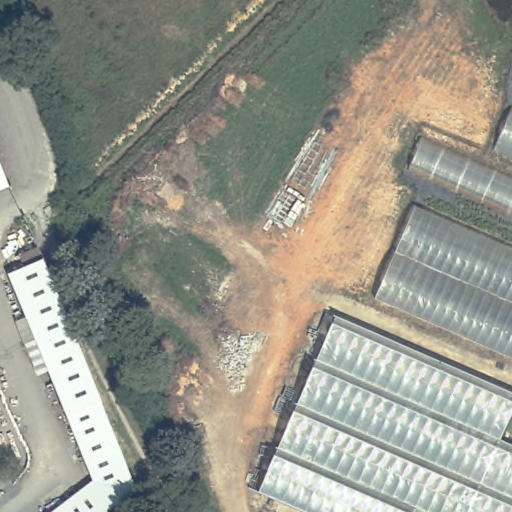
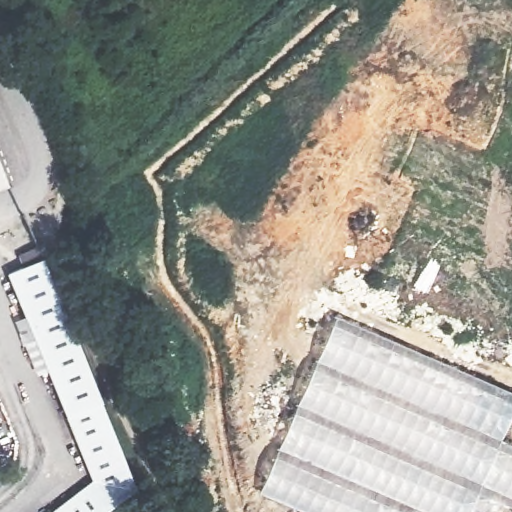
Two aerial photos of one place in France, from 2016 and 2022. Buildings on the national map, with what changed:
demolished [(512,170),(512,212),(408,166),(425,130),(512,170)]
unchanged [(6,179),(9,188),(0,192),(0,163),(6,179)]
demolished [(512,245),(512,355),(375,296),(415,204),(512,245)]
unchanged [(16,271),(50,257),(55,268),(140,479),(97,512),(48,512),(98,475),(16,271)]
unchanged [(512,415),(501,440),(512,445),(512,512),(307,512),(258,490),(337,310),(512,388),(512,415)]

